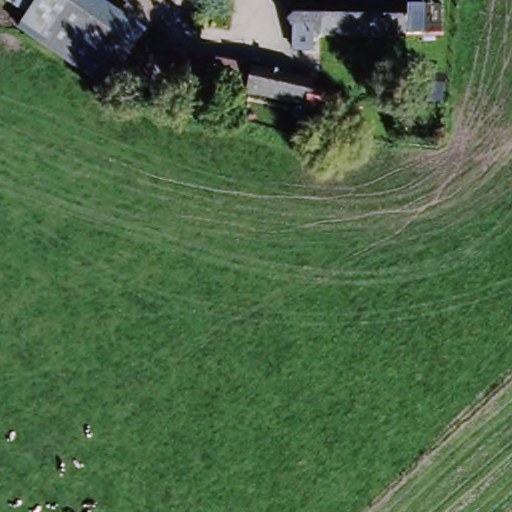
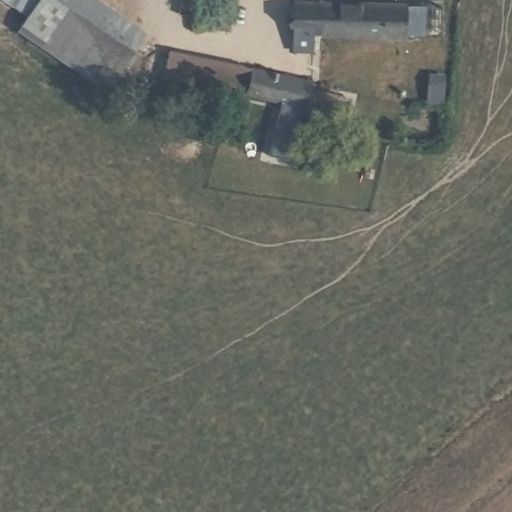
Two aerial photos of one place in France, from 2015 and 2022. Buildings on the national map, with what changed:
unchanged [(35,0),(27,11),(11,0),(35,0)]
unchanged [(16,26),(27,11),(35,0),(63,0),(128,44),(132,48),(126,56),(105,89),(16,26)]
unchanged [(435,31),(416,31),(400,31),(287,29),(288,0),(400,4),(417,4),(435,5),(435,31)]
unchanged [(310,82),(308,90),(334,98),(328,120),(238,95),(240,90),(160,69),(167,44),(310,82)]

